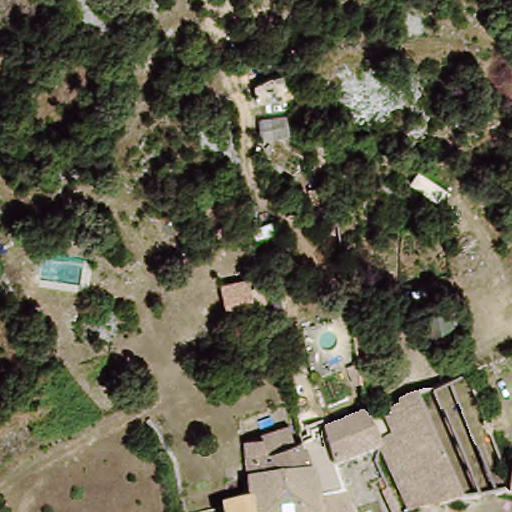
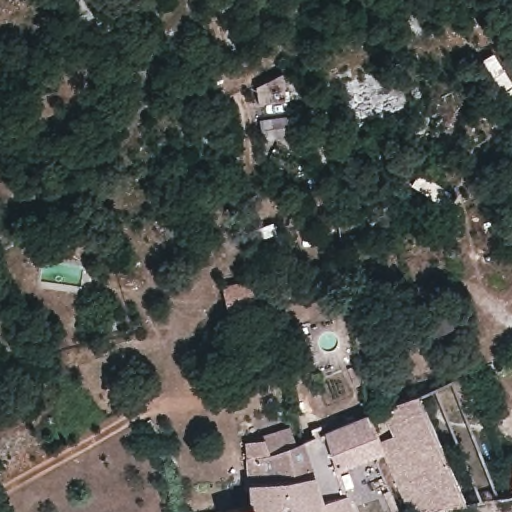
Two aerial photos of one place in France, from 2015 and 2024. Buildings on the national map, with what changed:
unchanged [(280,74),(283,99),(256,102),(253,86),(280,74)]
unchanged [(397,460),(385,424),(402,418),(431,407),(474,512),(416,512),(397,460)]
unchanged [(385,424),(397,460),(352,476),(362,512),(333,512),(318,449),(333,443),(385,424)]
unchanged [(280,443),(280,439),(306,431),(315,450),(318,449),(333,512),(263,512),(263,506),(261,478),(259,446),(280,443)]
unchanged [(263,506),(263,512),(240,512),(263,506)]

